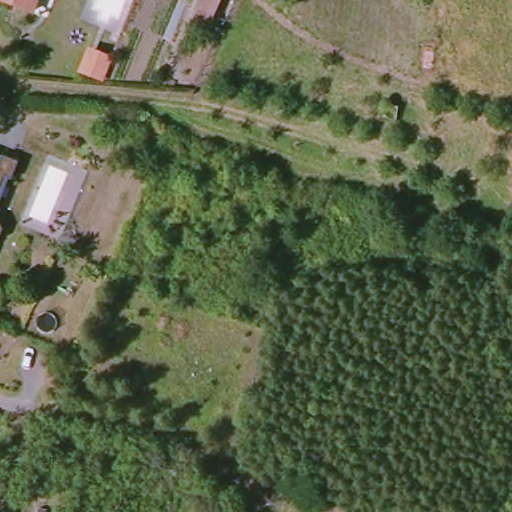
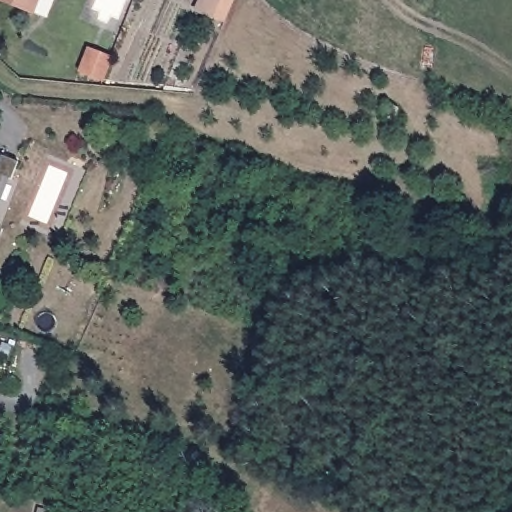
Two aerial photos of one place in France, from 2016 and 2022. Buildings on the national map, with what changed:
unchanged [(30,14),(0,1),(0,0),(36,0),(30,14)]
unchanged [(199,6),(202,0),(218,0),(213,11),(199,6)]
unchanged [(18,162),(8,187),(3,185),(0,184),(0,155),(18,162)]
unchanged [(3,185),(0,193),(0,184),(3,185)]

